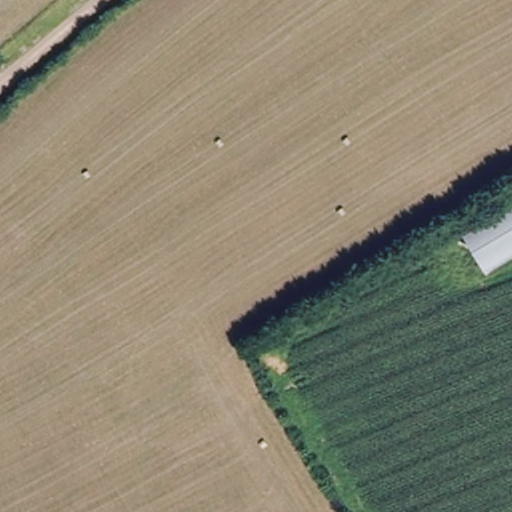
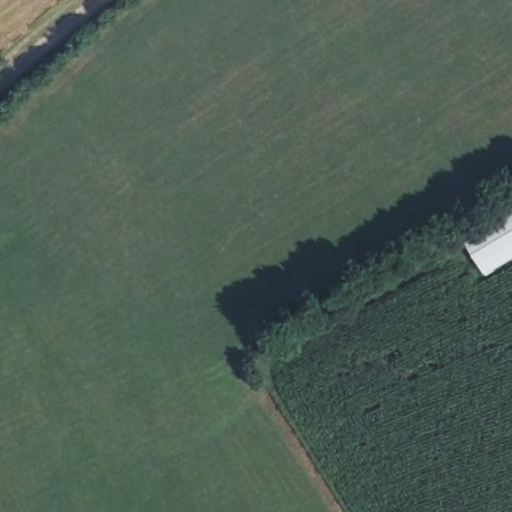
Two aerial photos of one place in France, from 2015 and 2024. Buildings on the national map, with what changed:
unchanged [(512,206),(512,260),(491,272),(470,244),(465,234),(512,206)]

